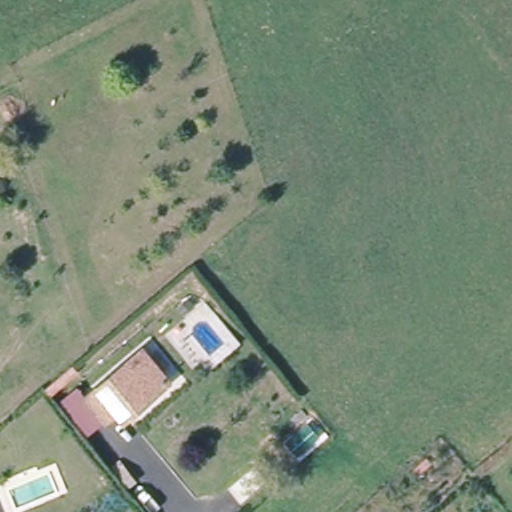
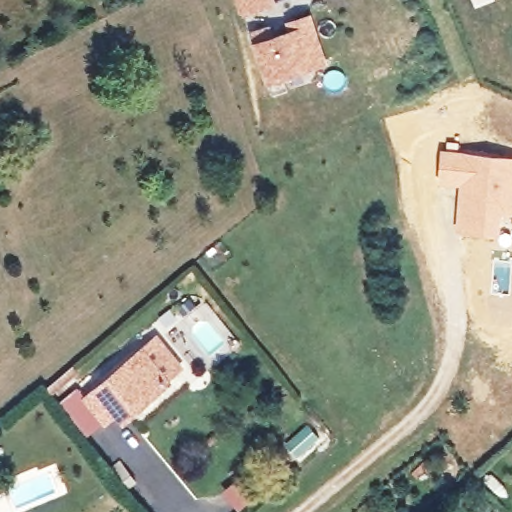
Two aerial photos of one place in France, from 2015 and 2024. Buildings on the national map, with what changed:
new [(277,4),(241,15),(236,0),(276,0),(277,4)]
new [(328,64),(266,83),(252,40),(290,28),(287,20),(312,12),(328,64)]
new [(512,212),(502,212),(501,236),(457,231),(461,185),(440,184),(442,149),(512,155),(512,212)]
unchanged [(119,405),(106,414),(87,394),(143,344),(169,373),(127,411),(119,405)]
unchanged [(106,414),(119,405),(127,411),(169,373),(174,380),(124,423),(117,417),(87,438),(67,412),(70,409),(62,400),(80,386),(87,394),(106,414)]
unchanged [(242,502),(231,488),(254,469),(265,483),(242,502)]

